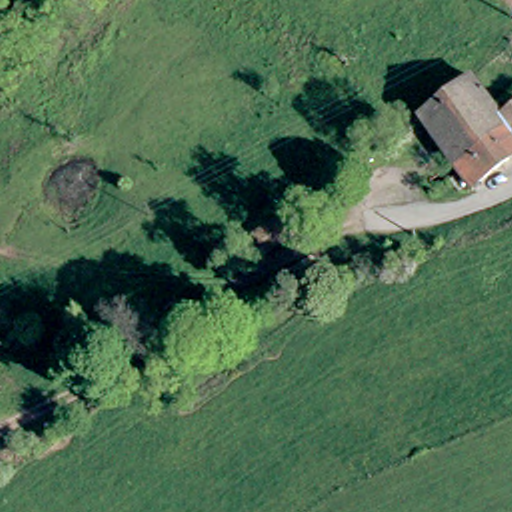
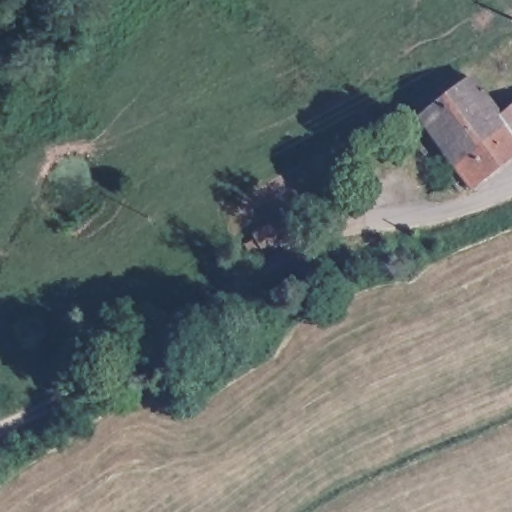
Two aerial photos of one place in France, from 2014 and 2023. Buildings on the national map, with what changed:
unchanged [(419,121),(472,78),(502,116),(512,129),(512,164),(473,190),(472,189),(419,121)]
unchanged [(512,108),(512,129),(502,116),(512,108)]
unchanged [(296,238),(271,253),(261,237),(286,221),(296,238)]

